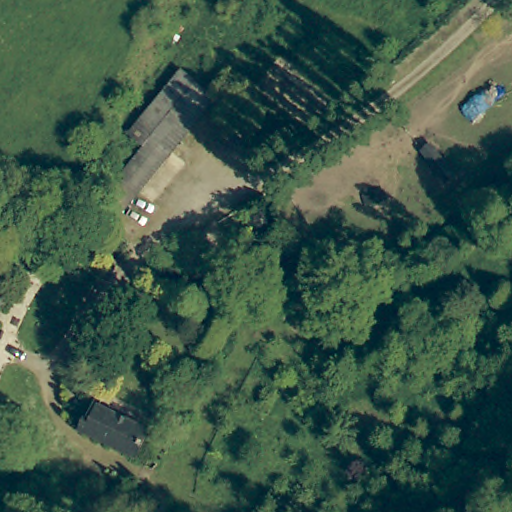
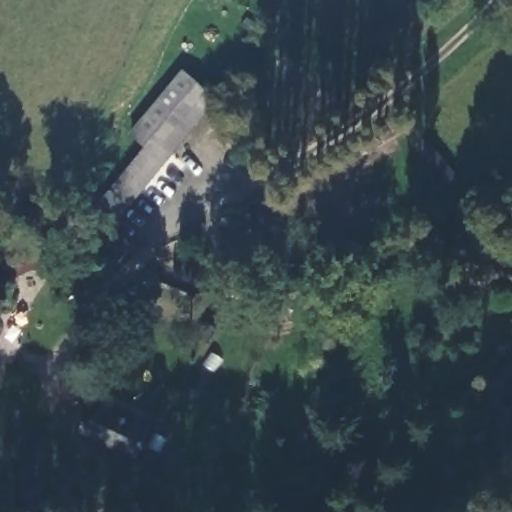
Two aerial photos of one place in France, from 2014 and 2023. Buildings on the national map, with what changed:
unchanged [(112,225),(95,210),(154,145),(139,132),(193,72),(224,99),(160,171),(129,206),(112,225)]
unchanged [(422,148),(432,141),(455,174),(445,181),(422,148)]
unchanged [(366,185),(388,185),(388,200),(366,200),(366,185)]
unchanged [(12,293),(8,306),(13,308),(0,337),(0,288),(12,293)]
unchanged [(87,433),(80,431),(86,417),(94,420),(101,406),(119,413),(150,427),(138,456),(106,442),(87,433)]

